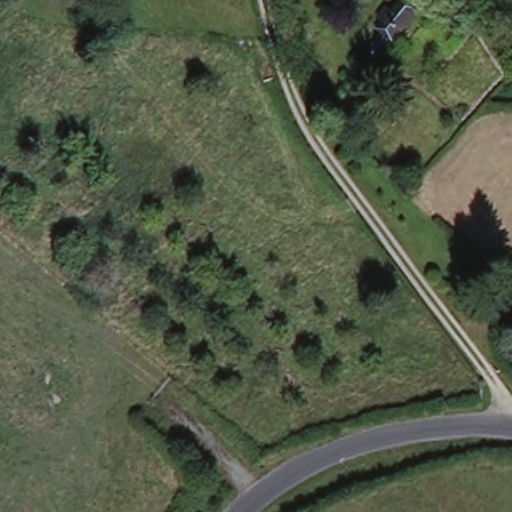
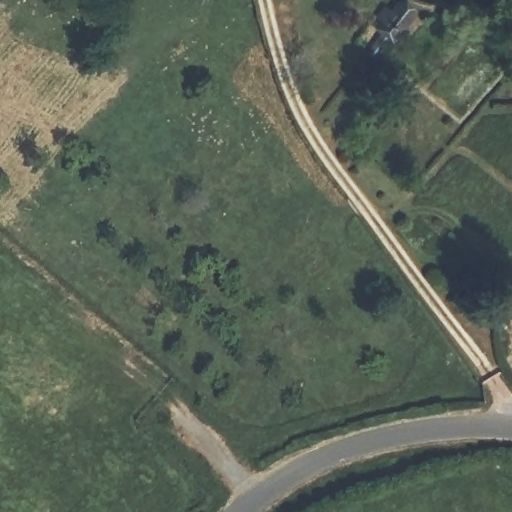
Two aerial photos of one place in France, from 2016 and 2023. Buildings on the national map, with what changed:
unchanged [(417,12),(376,59),(367,51),(382,35),(377,30),(385,21),(378,16),(384,7),(392,13),(403,0),(417,12)]

